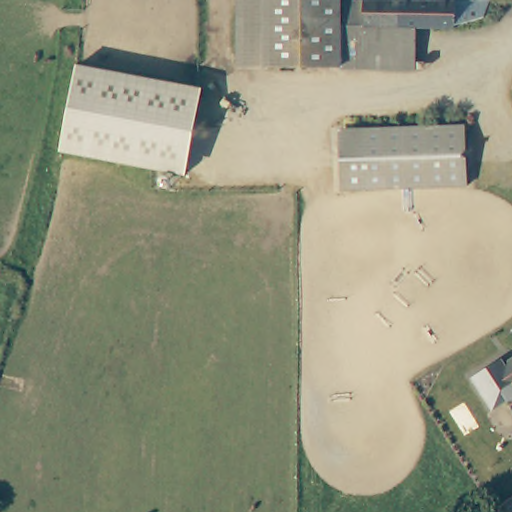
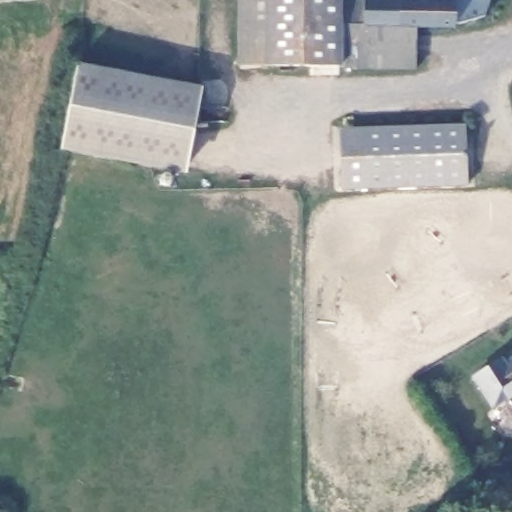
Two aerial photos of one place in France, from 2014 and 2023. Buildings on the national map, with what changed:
unchanged [(235,0),(333,0),(332,67),(234,67),(235,0)]
unchanged [(363,0),(404,1),(404,27),(363,27),(363,0)]
unchanged [(404,1),(426,1),(489,2),(484,19),(456,22),(455,28),(418,28),(404,27),(404,1)]
unchanged [(363,27),(404,27),(418,28),(416,69),(339,67),(340,27),(363,27)]
unchanged [(195,95),(183,178),(59,160),(71,76),(195,95)]
unchanged [(339,130),(462,129),(461,193),(340,192),(339,130)]
unchanged [(509,399),(494,409),(474,376),(504,357),(506,362),(512,358),(512,403),(509,399)]

